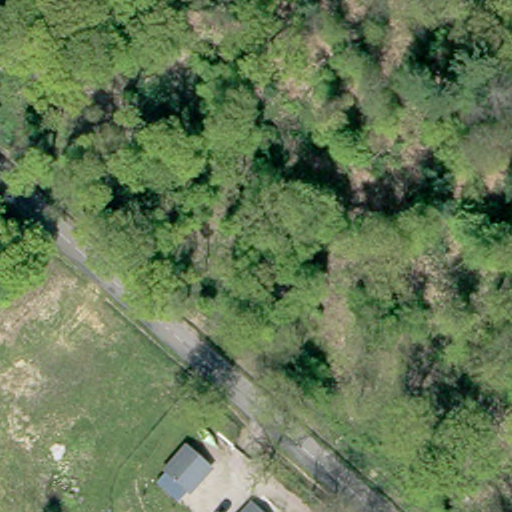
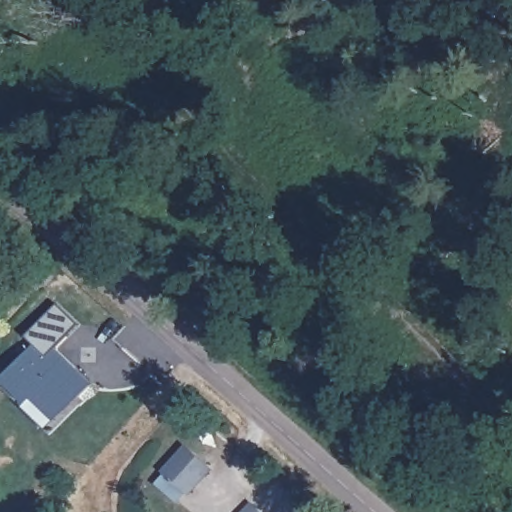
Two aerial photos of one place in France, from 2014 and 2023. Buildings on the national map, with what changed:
new [(27,338),(48,317),(59,306),(80,327),(70,338),(56,352),(75,371),(92,387),(64,416),(52,405),(46,411),(34,399),(27,405),(2,381),(36,347),(27,338)]
unchanged [(179,507),(154,483),(185,448),(212,470),(179,507)]
unchanged [(252,502),(263,512),(242,512),(252,502)]

